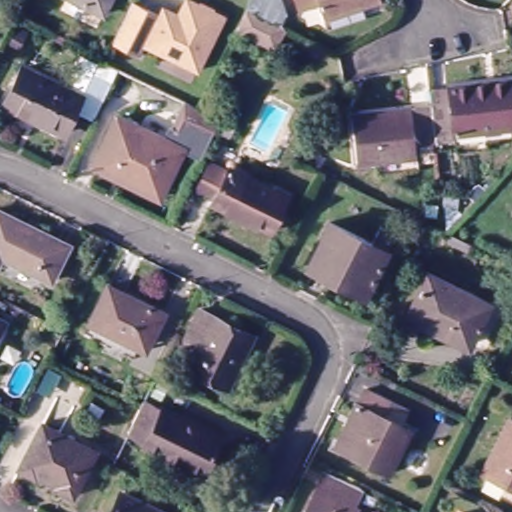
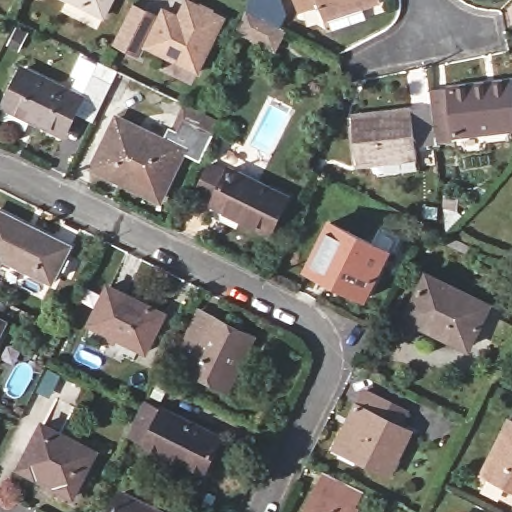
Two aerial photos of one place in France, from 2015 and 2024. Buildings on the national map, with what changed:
unchanged [(110,23),(65,0),(121,0),(110,23)]
unchanged [(163,23),(156,20),(162,4),(179,12),(184,0),(195,0),(200,2),(200,0),(217,7),(215,10),(228,16),(199,72),(149,49),(163,23)]
unchanged [(225,25),(234,6),(235,0),(275,0),(280,12),(274,25),(271,24),(262,42),(225,25)]
unchanged [(306,3),(305,0),(322,0),(306,3)]
unchanged [(338,21),(334,6),(327,8),(325,0),(369,0),(371,12),(338,21)]
unchanged [(136,10),(156,20),(163,23),(149,49),(142,62),(117,49),(136,10)]
unchanged [(108,72),(83,123),(64,115),(53,136),(0,109),(0,93),(12,71),(72,101),(82,80),(66,72),(74,56),(81,59),(108,72)]
unchanged [(429,97),(510,87),(512,102),(512,134),(434,144),(431,114),(429,97)]
unchanged [(174,158),(151,207),(85,175),(108,126),(156,149),(162,136),(175,109),(211,127),(226,134),(218,150),(203,143),(192,167),(174,158)]
unchanged [(414,146),(416,164),(356,170),(351,124),(431,114),(434,144),(414,146)]
unchanged [(280,240),(222,212),(224,207),(208,200),(220,174),(236,182),(239,174),(297,203),(280,240)]
unchanged [(51,287),(1,262),(0,264),(0,216),(70,251),(51,287)]
unchanged [(362,304),(304,275),(329,225),(371,245),(378,230),(393,237),(362,304)]
unchanged [(466,250),(447,241),(451,232),(470,242),(466,250)]
unchanged [(469,347),(407,317),(427,275),(489,306),(469,347)]
unchanged [(136,355),(88,330),(108,290),(164,317),(156,333),(144,358),(136,355)]
unchanged [(234,398),(194,379),(201,364),(188,357),(207,321),(259,347),(234,398)]
unchanged [(8,334),(0,350),(0,330),(8,334)]
unchanged [(339,450),(364,399),(388,412),(413,423),(406,437),(411,438),(389,482),(359,467),(336,456),(339,450)]
unchanged [(172,417),(232,447),(214,483),(154,453),(157,448),(138,440),(149,417),(152,412),(170,421),(172,417)]
unchanged [(509,422),(512,424),(512,493),(482,478),(509,422)]
unchanged [(71,501),(56,492),(58,488),(39,477),(37,482),(20,474),(42,426),(94,453),(71,501)]
unchanged [(358,512),(307,512),(325,475),(363,493),(355,510),(358,512)]
unchanged [(153,512),(113,512),(121,497),(153,512)]

